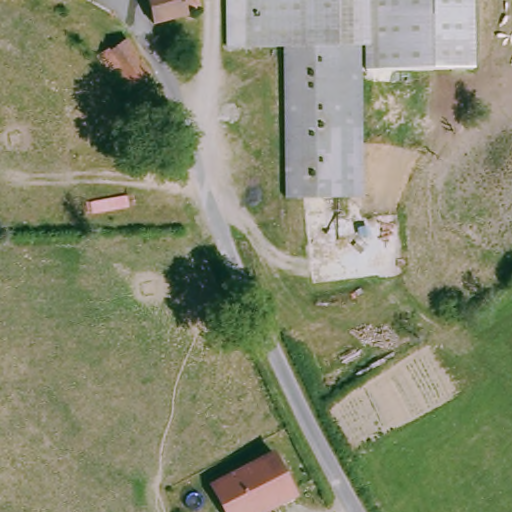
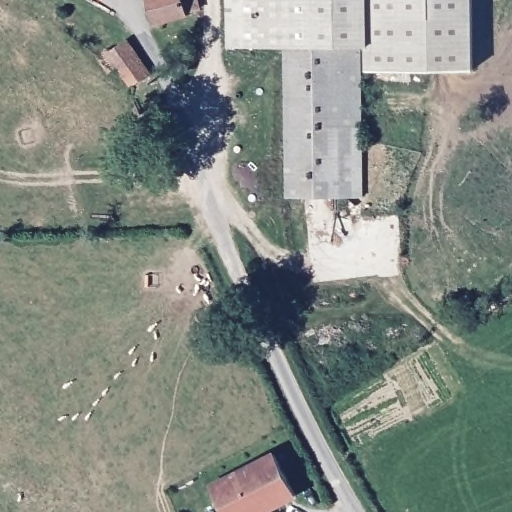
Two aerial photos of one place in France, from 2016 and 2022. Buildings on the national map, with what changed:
unchanged [(185,10),(186,15),(153,23),(147,0),(197,0),(198,7),(185,10)]
unchanged [(369,42),(369,196),(290,195),(294,44),(236,43),(236,0),(375,0),(374,41),(369,42)]
unchanged [(369,71),(369,42),(374,41),(375,0),(472,0),(474,71),(369,71)]
unchanged [(158,76),(136,87),(114,60),(124,51),(133,45),(158,76)]
unchanged [(213,485),(276,455),(296,497),(266,511),(264,512),(227,512),(213,485)]

